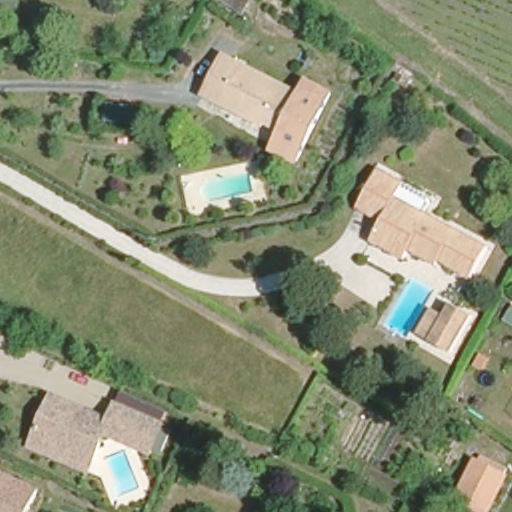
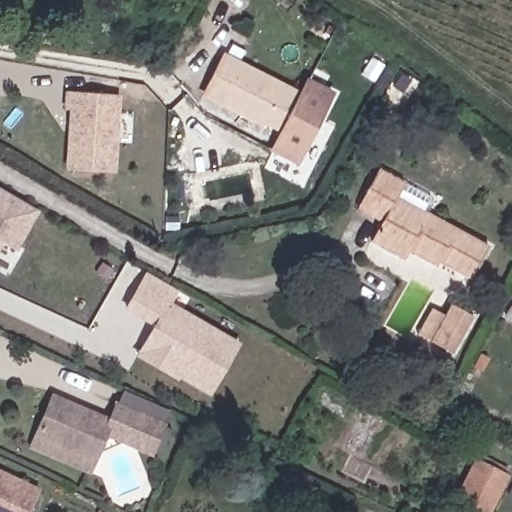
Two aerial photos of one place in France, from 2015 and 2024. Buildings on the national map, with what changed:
unchanged [(223,52),(300,91),(307,77),(331,89),(297,157),(273,145),(282,126),(267,118),(266,121),(239,106),(220,98),(204,90),(223,52)]
new [(117,172),(64,169),(65,140),(71,141),(72,125),(67,125),(69,91),(122,95),(117,172)]
unchanged [(431,193),(432,198),(426,211),(488,245),(472,273),(439,256),(436,260),(408,245),(404,254),(372,236),(383,218),(358,204),(365,190),(378,165),(431,193)]
new [(0,188),(38,211),(15,250),(1,273),(0,272),(0,188)]
new [(125,309),(145,274),(177,293),(172,302),(241,343),(210,396),(134,357),(153,325),(125,309)]
unchanged [(473,307),(452,344),(430,332),(417,325),(431,299),(445,306),(451,295),(473,307)]
unchanged [(31,442),(53,392),(110,416),(116,400),(163,420),(151,448),(104,429),(88,466),(31,442)]
unchanged [(476,463),(506,477),(488,512),(482,512),(458,501),(476,463)]
unchanged [(28,512),(0,512),(0,469),(39,487),(28,512)]

